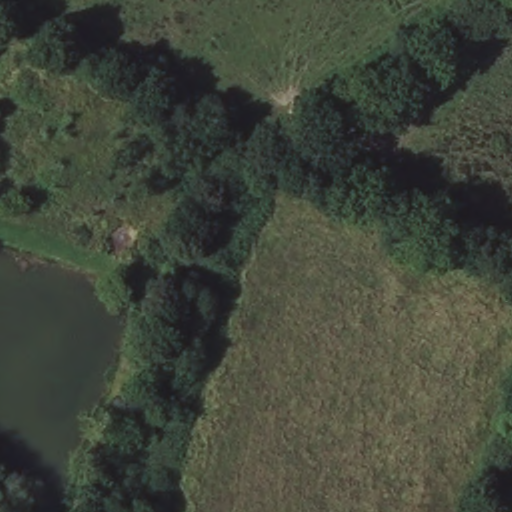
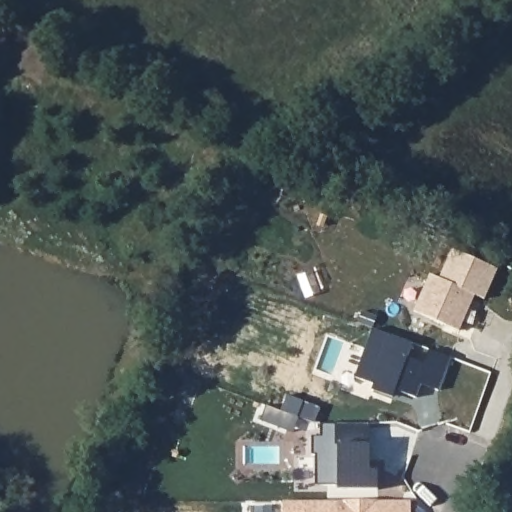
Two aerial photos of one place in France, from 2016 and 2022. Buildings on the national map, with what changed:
new [(459,331),(414,311),(431,274),(440,278),(453,249),(498,268),(485,299),(475,294),(470,307),(459,331)]
new [(372,389),(374,384),(355,377),(373,328),(413,343),(408,357),(424,363),(430,349),(451,357),(439,390),(421,383),(416,397),(401,391),(397,401),(373,392),(374,390),(372,389)]
new [(321,435),(321,423),(370,423),(369,443),(371,443),(371,456),(371,470),(378,470),(378,489),(338,489),(338,485),(315,485),(315,455),(312,455),(312,435),(321,435)]
new [(411,500),(411,512),(283,512),(283,500),(411,500)]

